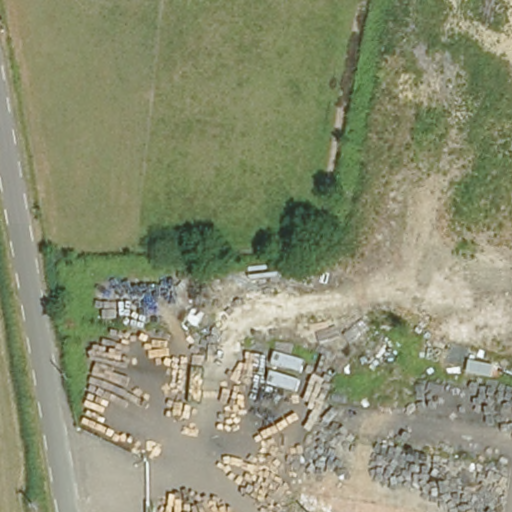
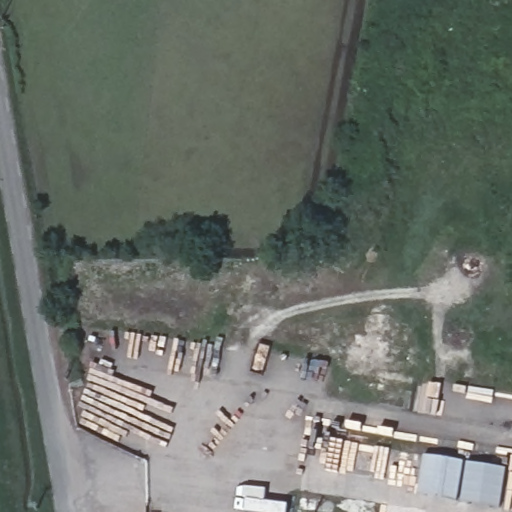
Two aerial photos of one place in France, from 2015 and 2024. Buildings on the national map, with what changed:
new [(423,457),(507,468),(500,508),(418,497),(423,457)]

